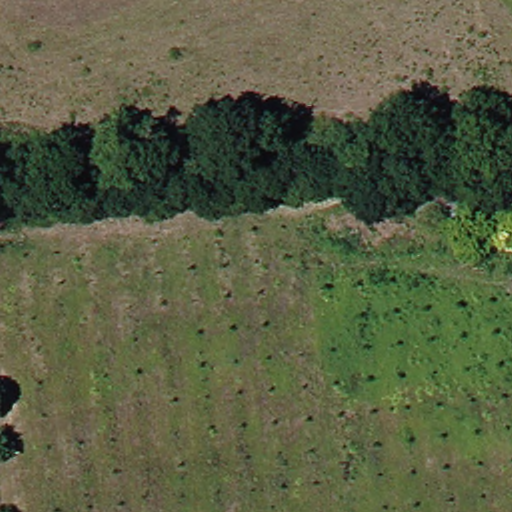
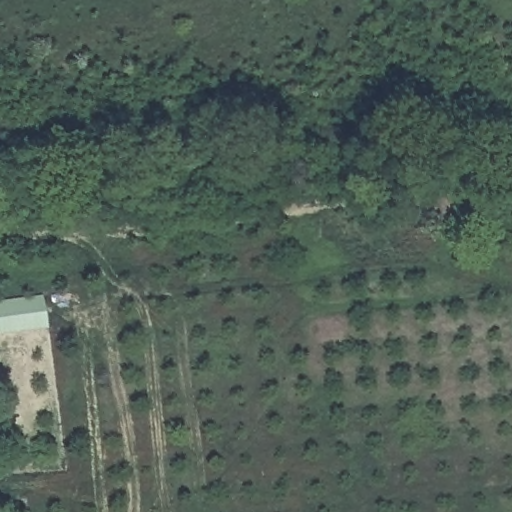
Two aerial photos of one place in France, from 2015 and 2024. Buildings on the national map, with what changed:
new [(0,302),(42,297),(46,330),(0,335),(0,302)]

